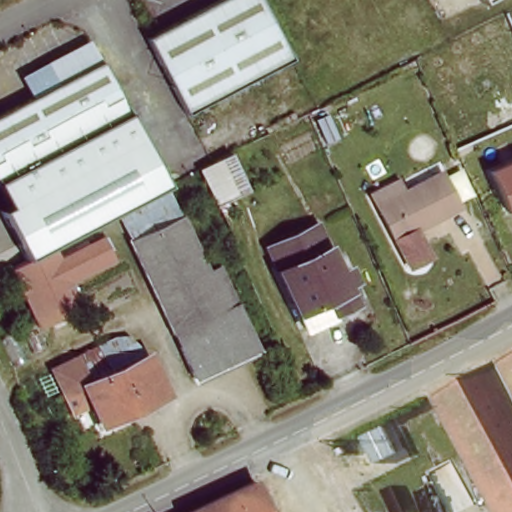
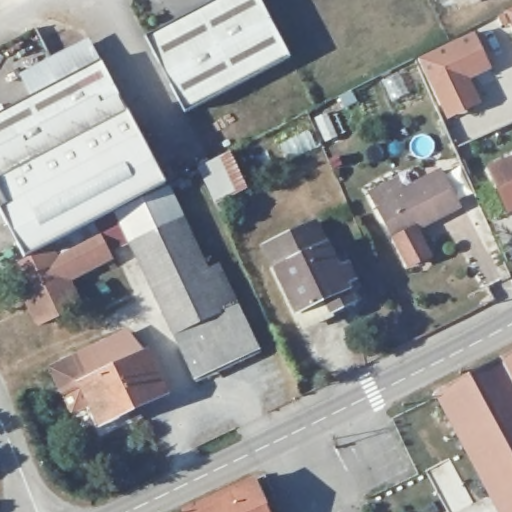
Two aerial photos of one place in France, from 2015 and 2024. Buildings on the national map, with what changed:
unchanged [(226,0),(255,0),(289,63),(184,119),(144,42),(226,0)]
unchanged [(480,0),(486,0),(481,2),(480,0)]
new [(512,9),(512,26),(505,12),(512,9)]
unchanged [(31,99),(18,73),(42,62),(36,48),(63,34),(71,48),(86,41),(99,64),(31,99)]
new [(471,80),(482,105),(448,122),(420,60),(475,34),(493,71),(471,80)]
unchanged [(0,181),(0,116),(31,99),(99,64),(126,115),(0,181)]
unchanged [(126,115),(164,182),(24,256),(0,211),(0,210),(6,207),(0,199),(0,181),(126,115)]
unchanged [(481,173),(512,158),(512,208),(500,214),(481,173)]
unchanged [(227,162),(231,160),(243,187),(215,201),(202,174),(206,173),(215,168),(227,162)]
unchanged [(402,250),(396,238),(378,204),(440,172),(458,206),(416,228),(423,240),(402,250)]
unchanged [(118,215),(119,214),(141,203),(166,190),(170,188),(185,223),(133,247),(118,215)]
unchanged [(185,223),(209,275),(221,270),(224,278),(234,301),(257,352),(195,383),(153,292),(133,247),(185,223)]
unchanged [(265,247),(317,223),(338,269),(349,264),(357,278),(346,283),(355,301),(303,325),(277,273),(265,247)]
unchanged [(54,256),(102,231),(113,254),(111,255),(65,278),(54,256)]
unchanged [(65,278),(111,255),(115,264),(73,284),(82,304),(36,326),(13,271),(53,251),(54,256),(65,278)]
unchanged [(497,507),(473,462),(443,407),(438,398),(443,395),(512,359),(512,512),(500,512),(500,511),(497,507)]
unchanged [(53,398),(42,372),(68,360),(79,388),(139,361),(155,398),(89,427),(81,409),(61,417),(53,398)]
unchanged [(260,502),(262,508),(263,511),(263,512),(189,512),(250,481),(260,502)]

